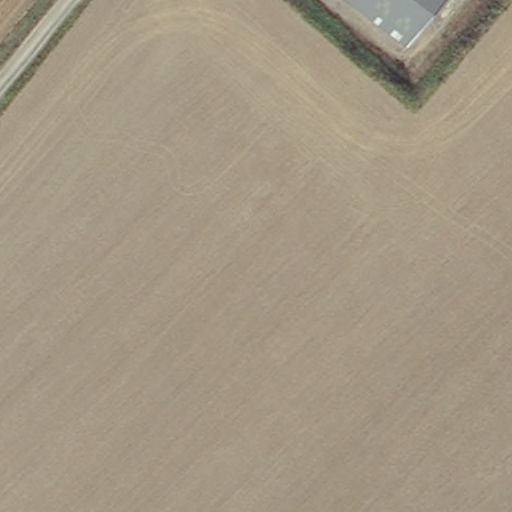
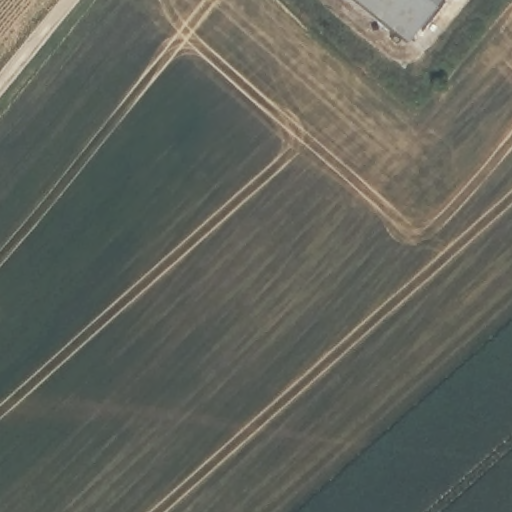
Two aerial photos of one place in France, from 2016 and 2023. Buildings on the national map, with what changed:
unchanged [(408,38),(358,0),(439,0),(408,38)]

